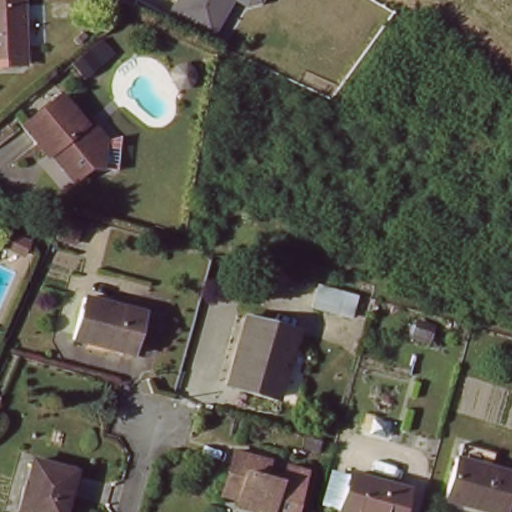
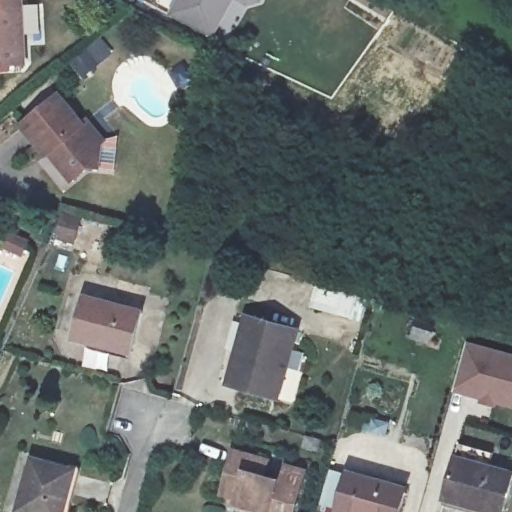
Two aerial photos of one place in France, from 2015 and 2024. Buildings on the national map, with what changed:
unchanged [(0,59),(0,0),(19,0),(22,58),(0,59)]
unchanged [(167,15),(175,0),(233,0),(213,38),(167,15)]
unchanged [(250,8),(238,0),(263,0),(262,1),(250,8)]
unchanged [(81,118),(77,121),(89,138),(105,138),(97,166),(77,167),(68,175),(47,148),(41,151),(18,119),(57,89),(81,118)]
unchanged [(79,222),(73,247),(52,243),(62,218),(79,222)]
unchanged [(17,243),(13,254),(0,249),(0,236),(17,243)]
unchanged [(141,311),(130,350),(73,335),(84,296),(141,311)]
unchanged [(296,329),(278,394),(227,378),(244,314),(296,329)]
new [(459,342),(512,357),(512,406),(510,405),(486,398),(485,403),(475,400),(476,395),(446,386),(459,342)]
unchanged [(488,468),(512,476),(512,479),(502,512),(479,512),(443,502),(461,441),(493,450),(488,468)]
unchanged [(268,453),(263,470),(284,475),(289,459),(310,466),(296,512),(269,512),(269,510),(237,501),(238,491),(222,487),(235,444),(268,453)]
unchanged [(77,464),(64,512),(44,512),(22,506),(35,453),(77,464)]
unchanged [(410,485),(401,512),(339,512),(352,469),(410,485)]

